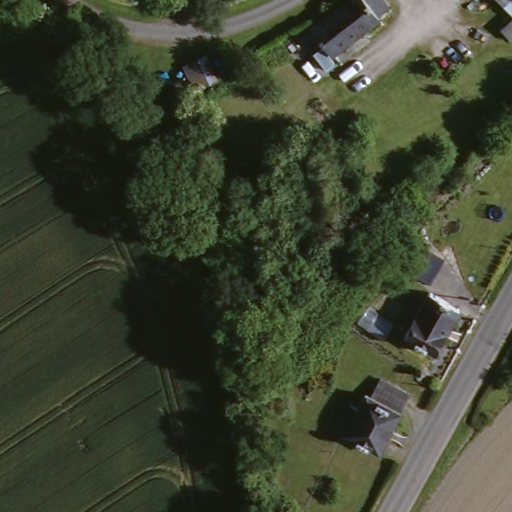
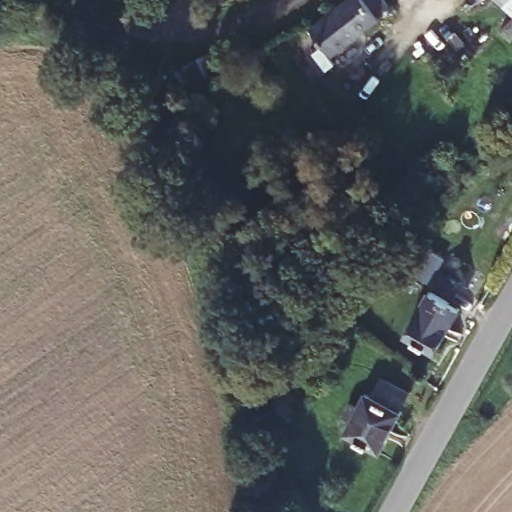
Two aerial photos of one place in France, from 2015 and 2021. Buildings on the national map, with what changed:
unchanged [(330,65),(305,34),(347,0),(354,0),(357,3),(360,0),(369,0),(382,15),(373,23),(377,27),(330,65)]
unchanged [(512,14),(498,0),(512,0),(512,14)]
unchanged [(209,60),(217,78),(195,88),(185,68),(209,60)]
unchanged [(432,267),(425,282),(394,267),(406,255),(432,267)]
unchanged [(459,308),(435,353),(403,336),(428,293),(459,308)]
unchanged [(348,414),(355,399),(363,402),(370,390),(405,408),(382,448),(348,430),(355,417),(348,414)]

